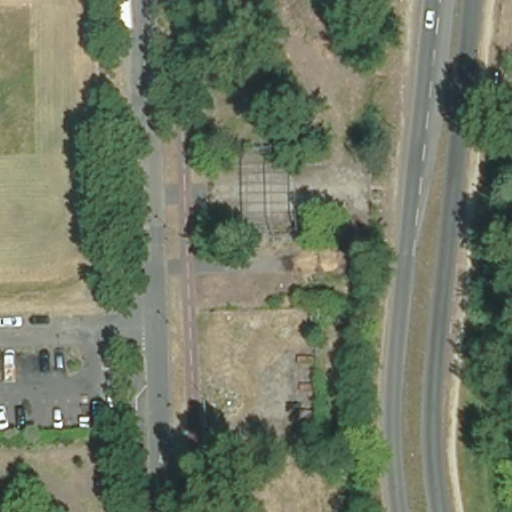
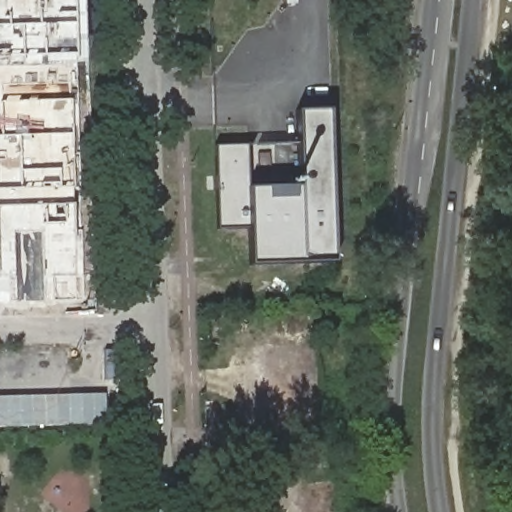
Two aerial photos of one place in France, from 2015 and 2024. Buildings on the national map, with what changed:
new [(64,66),(67,206),(0,207),(0,0),(77,0),(79,66),(64,66)]
new [(333,263),(249,266),(247,229),(216,230),(214,146),(246,145),(247,188),(297,186),(295,111),(328,110),(333,263)]
unchanged [(297,339),(314,339),(313,354),(297,354),(297,339)]
new [(105,424),(0,426),(0,397),(104,395),(105,424)]

